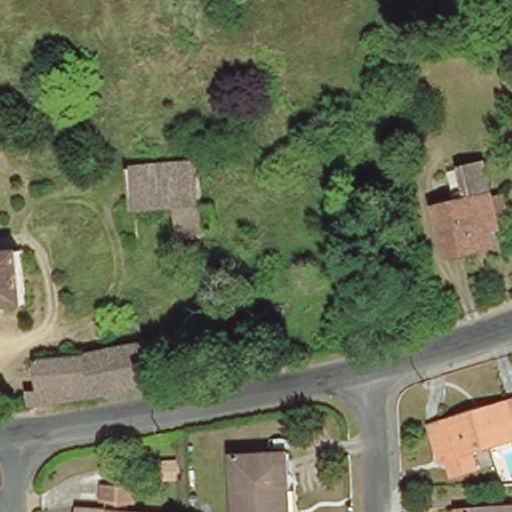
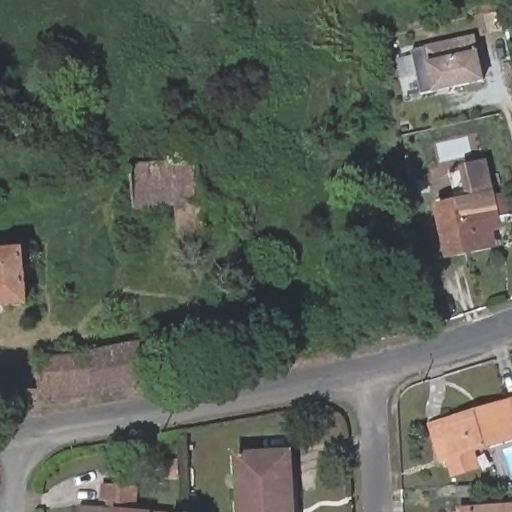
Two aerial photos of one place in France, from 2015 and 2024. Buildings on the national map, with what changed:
new [(435,93),(421,95),(412,49),(473,36),(478,51),(485,82),(435,93)]
unchanged [(197,156),(201,197),(204,224),(204,230),(181,232),(178,199),(137,202),(133,162),(197,156)]
unchanged [(503,228),(496,230),(500,245),(454,255),(443,207),(461,203),(453,171),(488,163),(503,228)]
unchanged [(0,301),(0,246),(22,245),(27,298),(0,301)]
unchanged [(88,353),(150,341),(155,385),(135,387),(92,394),(88,353)]
unchanged [(30,391),(41,390),(38,360),(88,353),(92,394),(32,403),(30,391)]
unchanged [(477,455),(453,462),(448,448),(441,450),(436,435),(430,417),(469,405),(512,391),(512,428),(472,440),(477,455)]
unchanged [(289,453),(292,512),(239,512),(236,456),(289,453)]
unchanged [(78,502),(107,505),(108,495),(101,494),(102,480),(137,482),(135,496),(128,496),(127,506),(167,509),(167,512),(78,512),(78,502)]
unchanged [(512,512),(469,512),(512,510),(512,512)]

